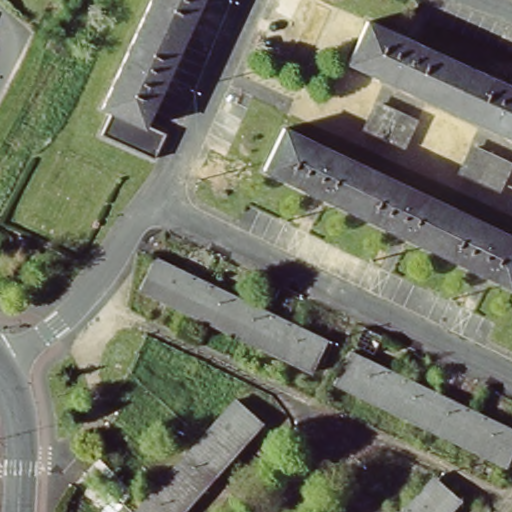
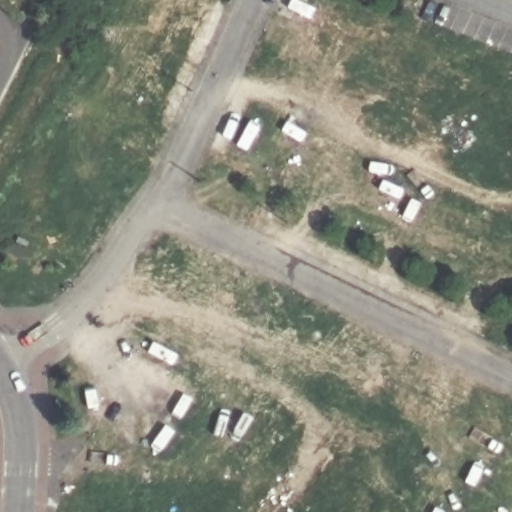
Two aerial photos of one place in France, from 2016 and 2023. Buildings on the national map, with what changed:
demolished [(162,137),(150,161),(98,137),(109,115),(100,110),(150,0),(200,0),(141,128),(162,137)]
demolished [(442,111),(340,64),(359,23),(462,70),(442,111)]
demolished [(462,70),(512,95),(512,143),(442,111),(462,70)]
demolished [(380,96),(407,110),(394,137),(366,124),(380,96)]
demolished [(403,191),(512,244),(512,295),(257,172),(277,131),(403,191)]
demolished [(477,140),(507,154),(494,180),(465,167),(477,140)]
demolished [(152,265),(325,347),(310,376),(138,294),(152,265)]
demolished [(337,387),(351,357),(512,435),(512,466),(510,470),(337,387)]
demolished [(264,427),(189,512),(142,512),(238,405),(264,427)]
demolished [(457,505),(451,512),(404,512),(431,482),(457,505)]

